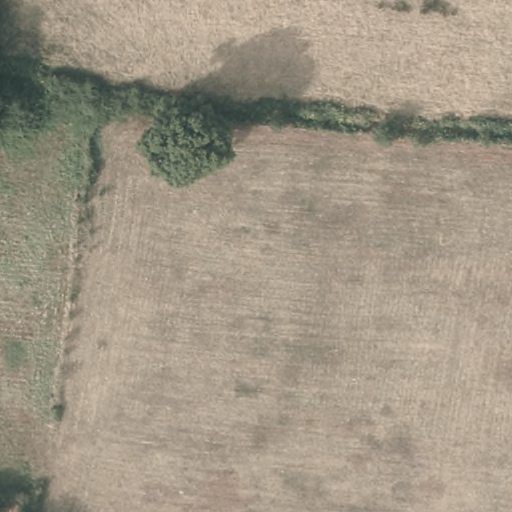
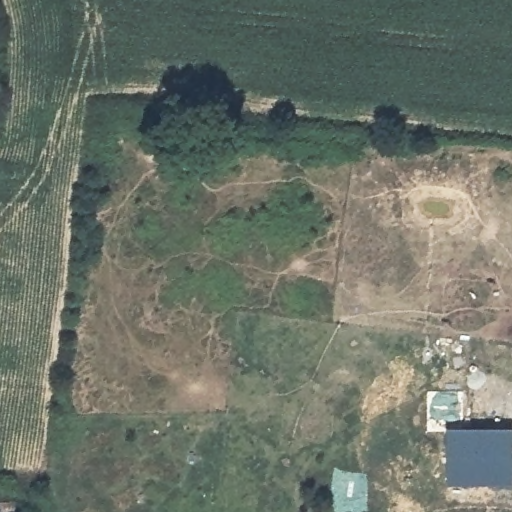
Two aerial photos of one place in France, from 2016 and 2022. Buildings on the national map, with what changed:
new [(450,434),(434,433),(434,392),(468,392),(468,431),(512,432),(512,481),(449,480),(450,434)]

